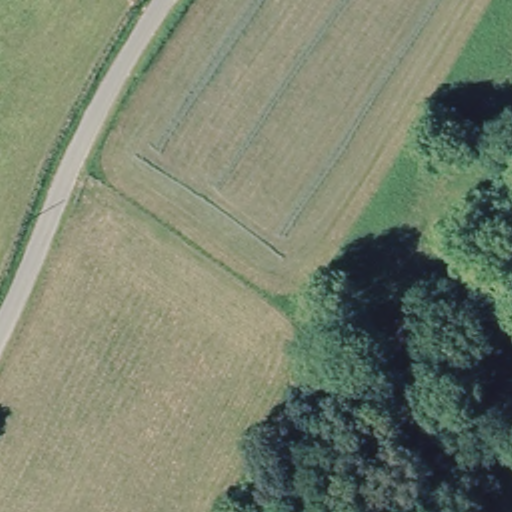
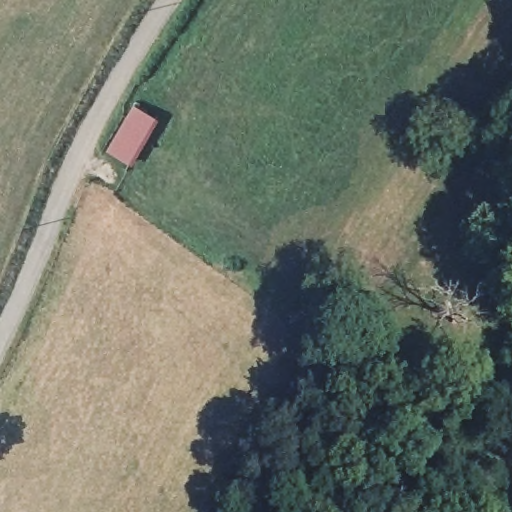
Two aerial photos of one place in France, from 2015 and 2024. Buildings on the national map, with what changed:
new [(134,165),(107,150),(134,103),(160,119),(134,165)]

